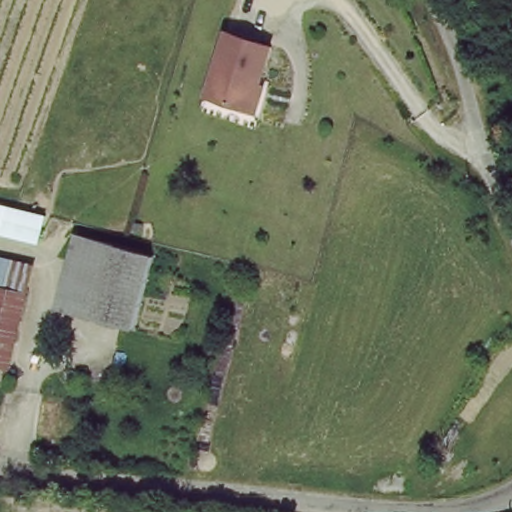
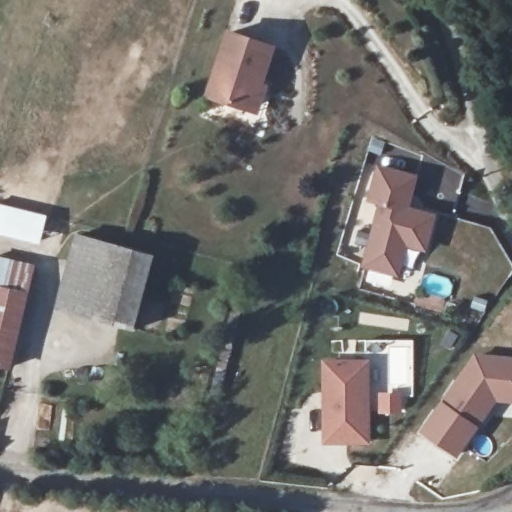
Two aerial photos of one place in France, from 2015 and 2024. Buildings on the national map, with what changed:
unchanged [(257,115),(246,112),(205,98),(229,31),(276,47),(262,87),(267,88),(257,115)]
new [(377,164),(419,175),(411,207),(437,213),(427,253),(407,247),(399,278),(361,268),(377,205),(367,201),(377,164)]
new [(47,217),(37,250),(0,239),(0,203),(47,217)]
unchanged [(61,308),(78,239),(113,247),(124,250),(156,257),(139,329),(102,322),(93,320),(94,317),(61,308)]
unchanged [(39,269),(33,294),(0,286),(0,260),(39,269)]
unchanged [(12,369),(0,366),(0,286),(33,294),(12,369)]
new [(512,358),(512,402),(495,401),(456,457),(420,431),(474,354),(512,358)]
new [(370,444),(322,444),(321,358),(370,358),(370,444)]

